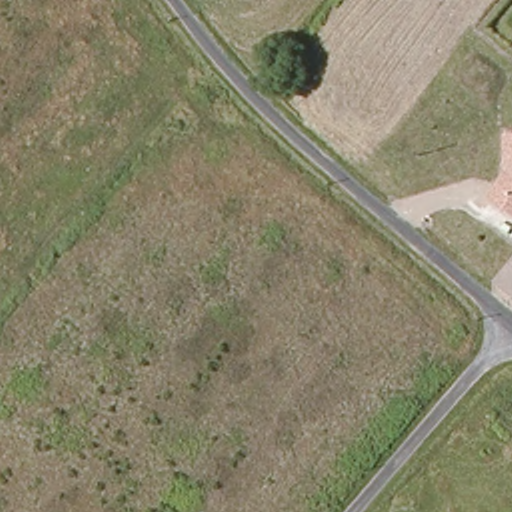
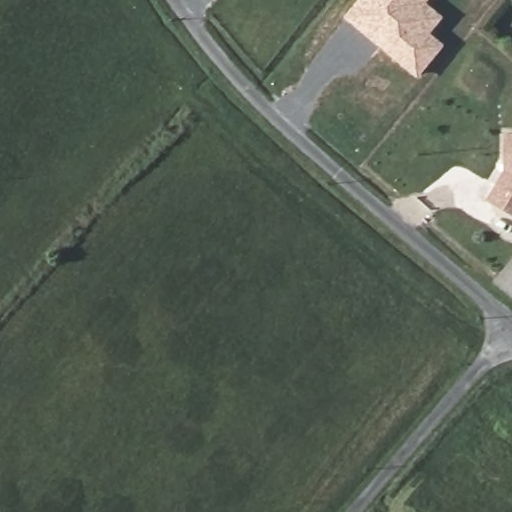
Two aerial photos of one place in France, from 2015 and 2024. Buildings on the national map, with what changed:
new [(343,19),(359,0),(430,0),(427,4),(444,17),(432,34),(447,46),(419,80),(343,19)]
unchanged [(486,197),(505,168),(504,134),(512,134),(512,212),(486,197)]
unchanged [(508,300),(490,286),(512,259),(512,295),(508,300)]

